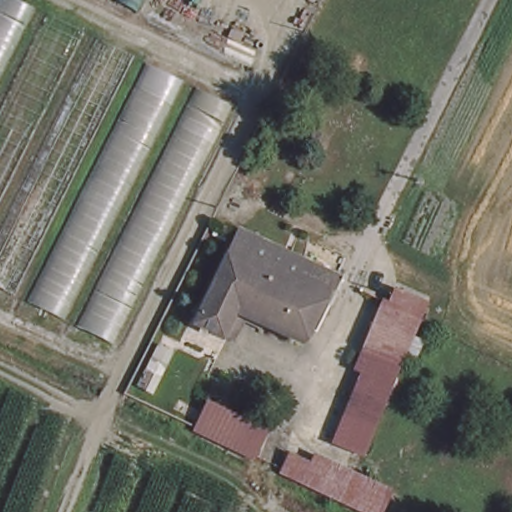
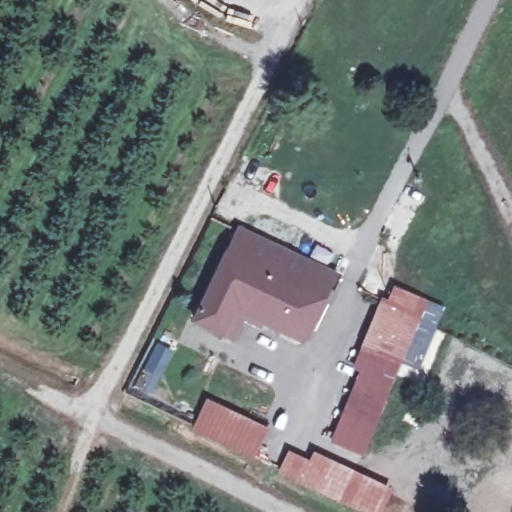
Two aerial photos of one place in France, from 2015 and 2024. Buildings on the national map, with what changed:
demolished [(0,298),(0,0),(21,0),(233,104),(111,351),(0,298)]
demolished [(113,0),(142,0),(136,11),(113,0)]
unchanged [(243,329),(234,351),(198,334),(233,241),(331,281),(307,343),(265,325),(260,337),(243,329)]
unchanged [(368,463),(336,453),(360,382),(351,378),(373,312),(378,313),(383,296),(417,306),(411,325),(368,463)]
unchanged [(259,432),(251,454),(199,431),(204,415),(226,424),(225,426),(233,429),(238,423),(259,432)]
unchanged [(173,432),(166,448),(152,441),(157,426),(173,432)]
unchanged [(382,512),(351,512),(284,482),(291,469),(309,477),(314,468),(388,499),(382,512)]

